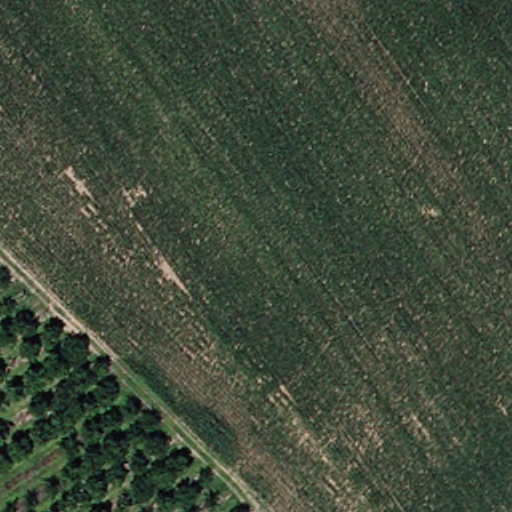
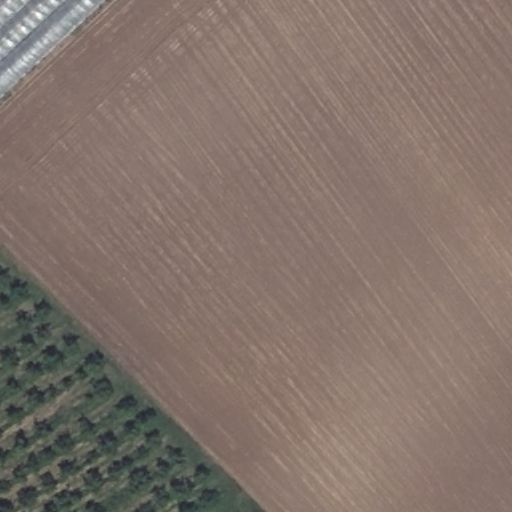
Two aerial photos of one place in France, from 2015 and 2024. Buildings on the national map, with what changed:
new [(0,100),(0,0),(109,0),(0,100)]

